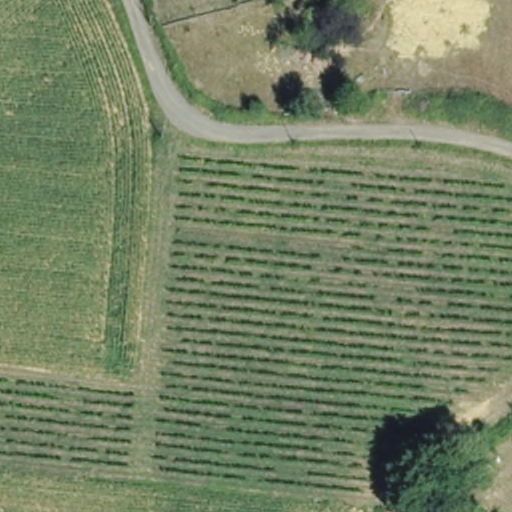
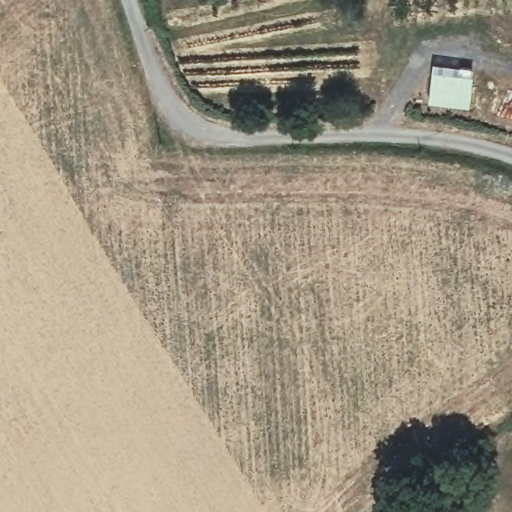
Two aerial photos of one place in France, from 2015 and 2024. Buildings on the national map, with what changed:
new [(434,72),(434,67),(474,72),(474,77),(471,109),(431,104),(434,72)]

